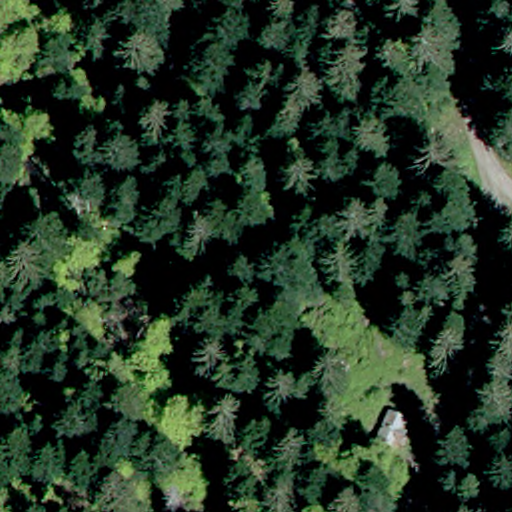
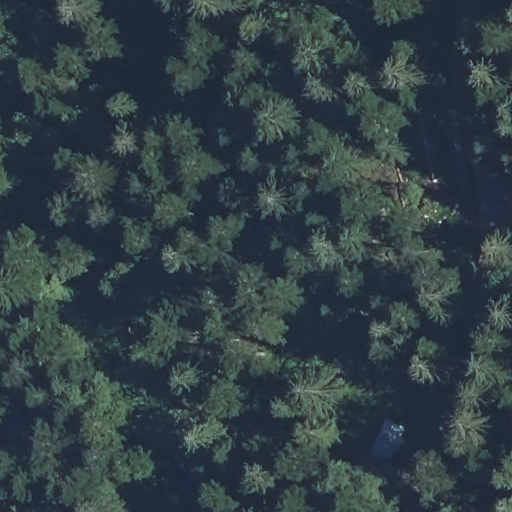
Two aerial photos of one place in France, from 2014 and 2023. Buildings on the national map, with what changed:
unchanged [(415,433),(400,469),(378,460),(392,425),(415,433)]

